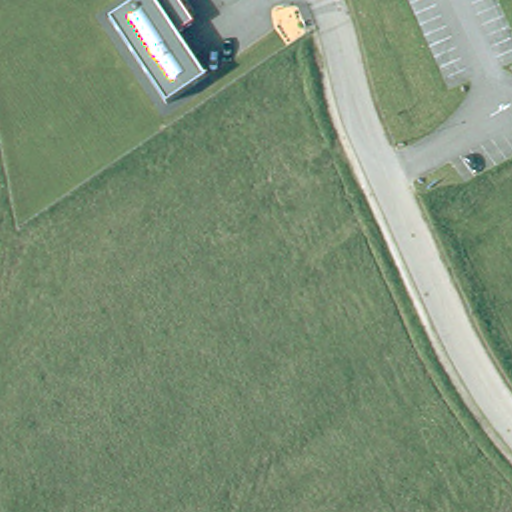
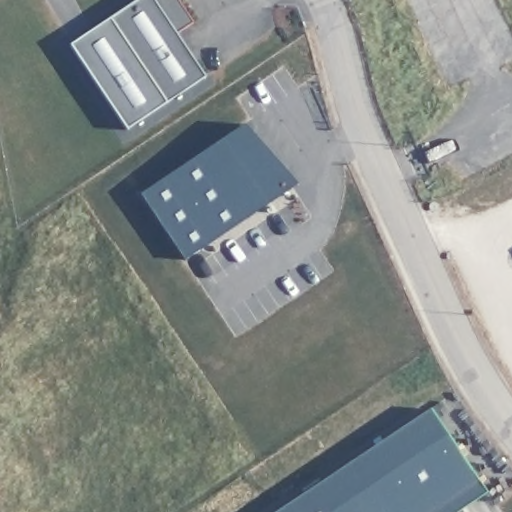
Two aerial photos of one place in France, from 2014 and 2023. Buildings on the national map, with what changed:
unchanged [(136,0),(185,0),(198,19),(176,35),(204,78),(166,103),(110,16),(136,0)]
new [(166,103),(128,129),(70,45),(110,16),(166,103)]
new [(296,184),(183,259),(140,194),(243,125),(296,184)]
new [(459,512),(274,512),(429,408),(488,492),(459,512)]

